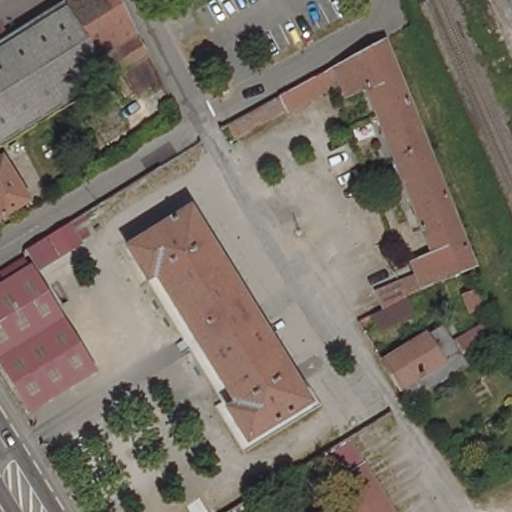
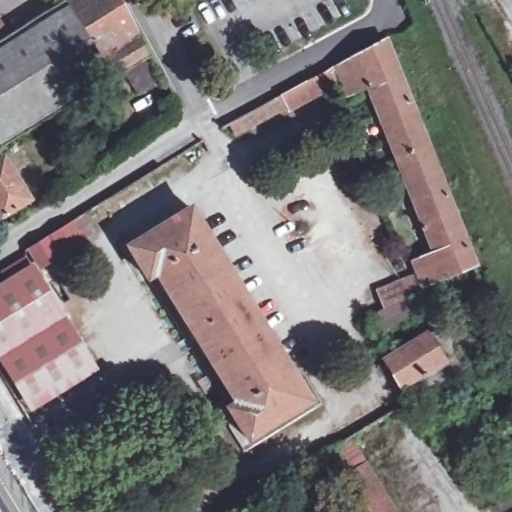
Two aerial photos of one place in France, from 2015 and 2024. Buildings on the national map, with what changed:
unchanged [(8,136),(3,139),(0,135),(0,20),(7,31),(28,18),(56,0),(122,0),(149,52),(21,128),(28,140),(14,148),(8,136)]
unchanged [(387,36),(477,265),(413,294),(406,281),(421,274),(415,263),(438,252),(373,84),(349,94),(344,81),(291,111),(289,105),(236,134),(231,123),(387,36)]
unchanged [(1,217),(0,215),(0,159),(4,157),(29,199),(1,217)]
unchanged [(311,402),(248,438),(229,407),(237,401),(158,271),(149,277),(130,245),(193,208),(311,402)]
unchanged [(69,225),(80,245),(38,271),(26,252),(69,225)]
unchanged [(383,308),(372,284),(415,263),(421,274),(406,281),(413,294),(406,297),(413,312),(376,330),(369,315),(383,308)]
unchanged [(0,366),(0,286),(30,269),(94,373),(28,413),(0,366)]
unchanged [(492,302),(474,309),(468,294),(486,287),(492,302)]
unchanged [(444,323),(456,336),(494,314),(509,342),(470,364),(407,404),(380,359),(444,323)]
unchanged [(360,512),(337,477),(311,489),(300,471),(353,438),(401,512),(360,512)]

